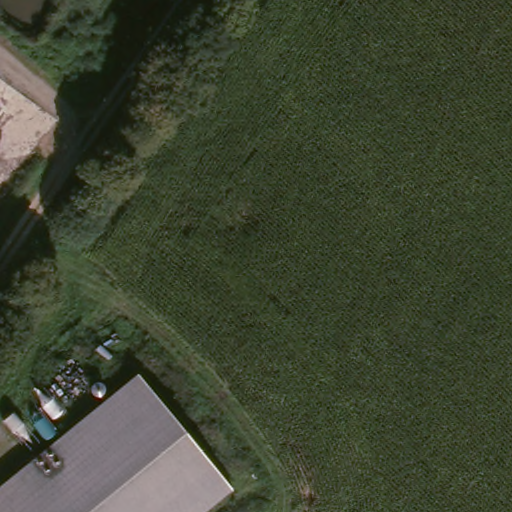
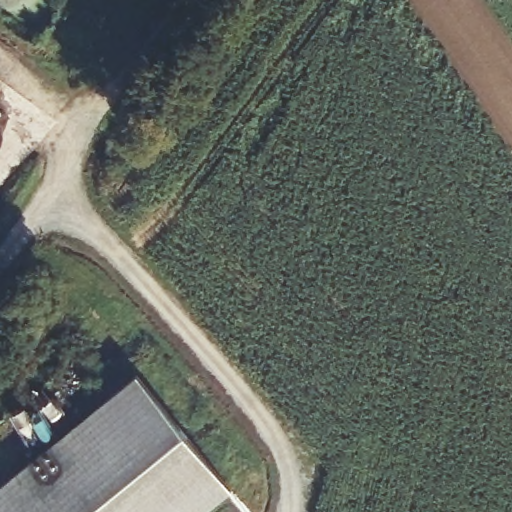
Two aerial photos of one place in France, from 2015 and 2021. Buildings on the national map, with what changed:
unchanged [(1,116),(0,117),(0,115),(1,116)]
unchanged [(120,387),(137,373),(231,489),(224,495),(203,512),(0,512),(0,486),(120,387)]

